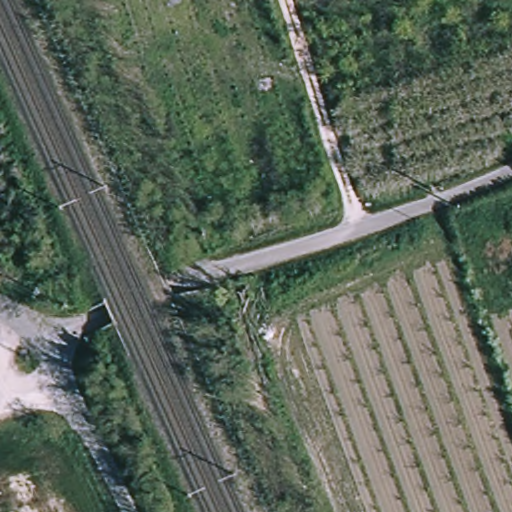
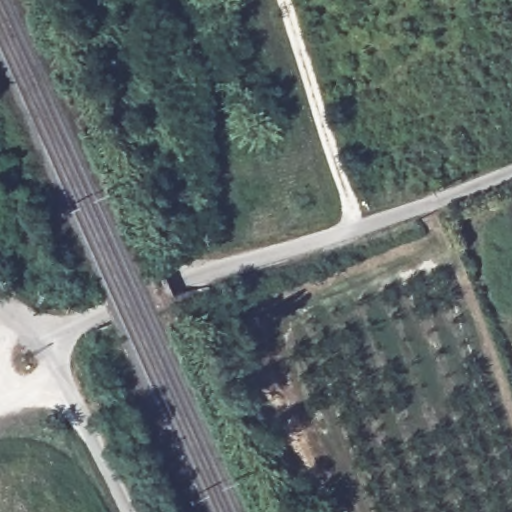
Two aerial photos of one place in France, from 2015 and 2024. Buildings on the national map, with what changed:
[]

